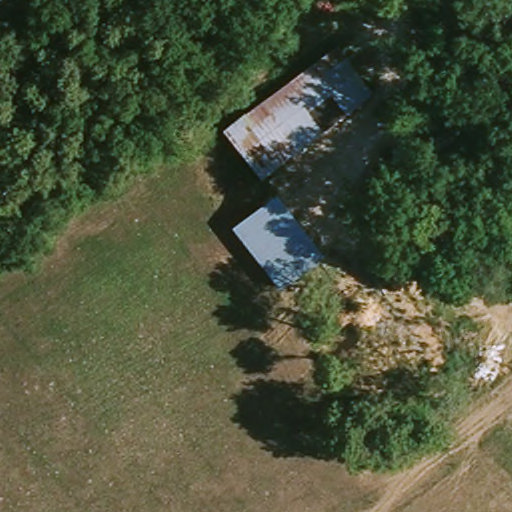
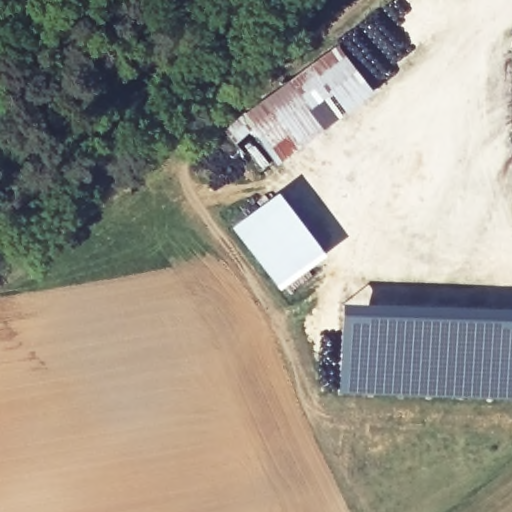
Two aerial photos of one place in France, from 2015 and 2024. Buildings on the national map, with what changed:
unchanged [(339,48),(371,89),(259,176),(225,133),(339,48)]
unchanged [(279,190),(329,253),(282,289),(234,228),(279,190)]
new [(340,306),(512,310),(512,400),(337,396),(340,306)]

